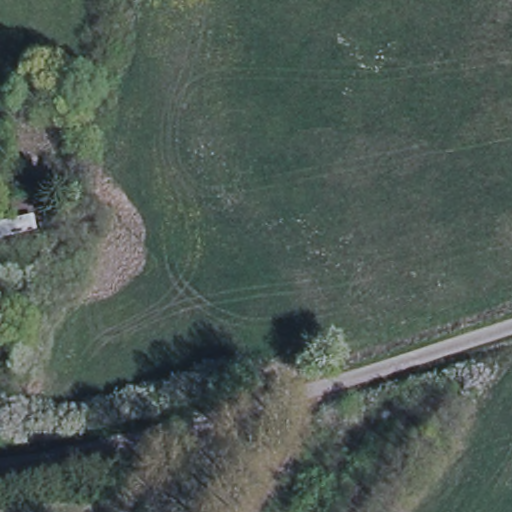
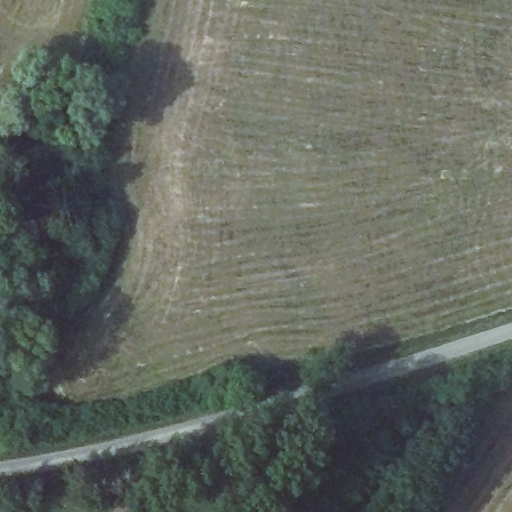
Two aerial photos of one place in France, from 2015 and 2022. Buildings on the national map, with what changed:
unchanged [(17,220),(15,211),(34,206),(37,201),(48,199),(56,231),(0,243),(0,226),(17,220)]
unchanged [(27,298),(32,312),(0,322),(0,307),(27,298)]

